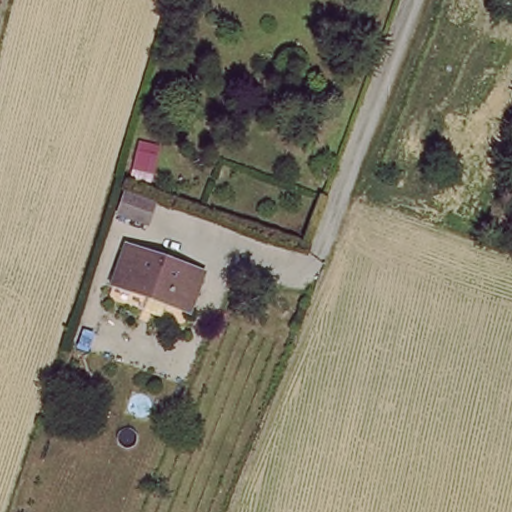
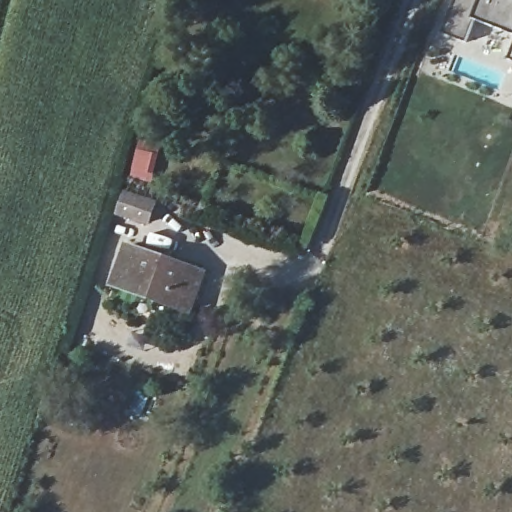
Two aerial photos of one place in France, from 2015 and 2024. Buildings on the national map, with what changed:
new [(475,20),(467,43),(443,34),(455,0),(512,0),(512,34),(475,20)]
new [(512,51),(512,60),(509,59),(512,51)]
unchanged [(163,159),(155,180),(128,170),(135,149),(163,159)]
unchanged [(151,225),(121,214),(128,190),(160,200),(151,225)]
unchanged [(204,268),(190,309),(117,282),(129,240),(204,268)]

